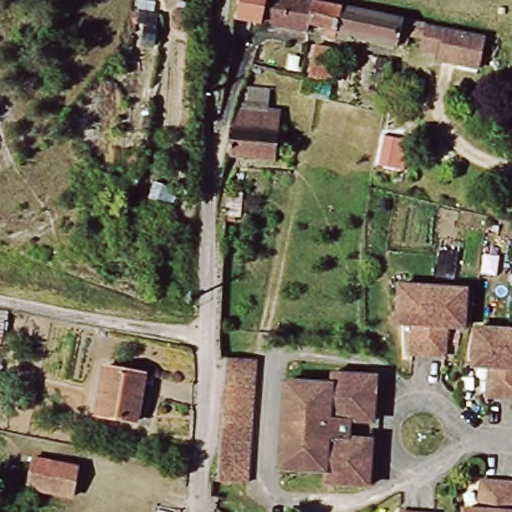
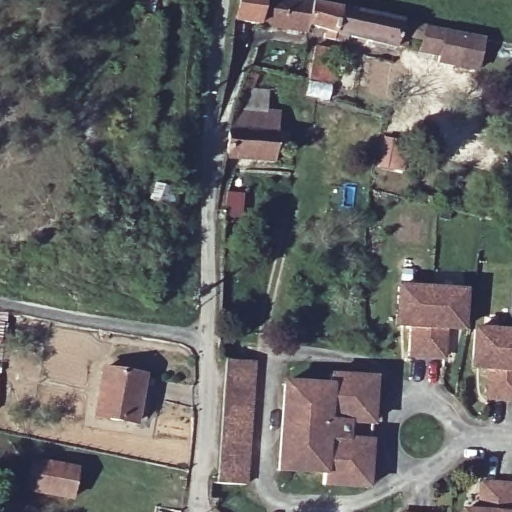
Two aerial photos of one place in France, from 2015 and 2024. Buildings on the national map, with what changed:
unchanged [(233,4),(234,0),(264,0),(256,31),(249,30),(226,27),(231,4),(233,4)]
unchanged [(333,37),(319,33),(316,41),(304,39),(304,37),(256,31),(264,0),(300,0),(314,3),(343,8),(378,17),(403,26),(412,29),(406,57),(397,54),(370,47),(333,37)]
unchanged [(139,53),(141,33),(128,29),(133,15),(158,21),(152,55),(139,53)]
unchanged [(479,68),(441,60),(442,54),(422,50),(427,27),(447,31),(486,39),(479,68)]
unchanged [(393,72),(376,68),(379,58),(395,63),(393,72)]
unchanged [(309,79),(313,60),(331,64),(327,84),(309,79)]
unchanged [(278,152),(276,168),(223,164),(229,119),(238,94),(270,99),(267,120),(281,123),(279,139),(289,140),(288,153),(278,152)]
unchanged [(240,220),(233,219),(232,225),(223,225),(226,194),(243,196),(240,220)]
unchanged [(467,335),(451,334),(449,361),(417,359),(419,331),(402,330),(405,293),(469,298),(467,335)]
unchanged [(480,334),(512,337),(512,405),(491,404),(493,373),(477,372),(480,334)]
unchanged [(259,367),(253,490),(223,489),(228,366),(259,367)]
unchanged [(101,421),(109,375),(148,382),(141,426),(101,421)]
unchanged [(324,489),(324,479),(279,477),(284,389),(328,392),(329,379),(367,380),(374,381),(371,427),(368,427),(348,426),(347,446),(368,447),(369,447),(368,492),(324,489)]
unchanged [(28,494),(34,468),(77,474),(72,501),(28,494)]
unchanged [(512,492),(512,512),(485,512),(485,491),(512,492)]

